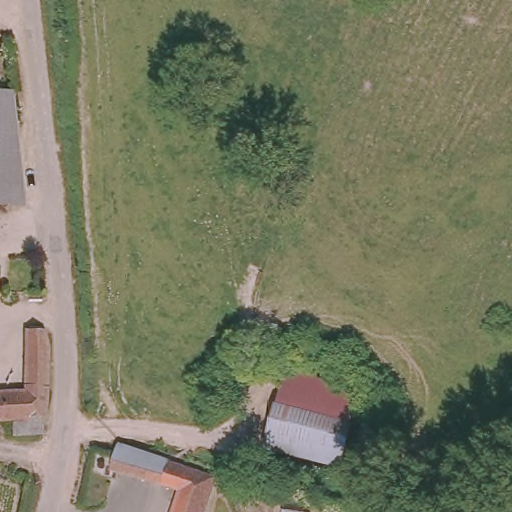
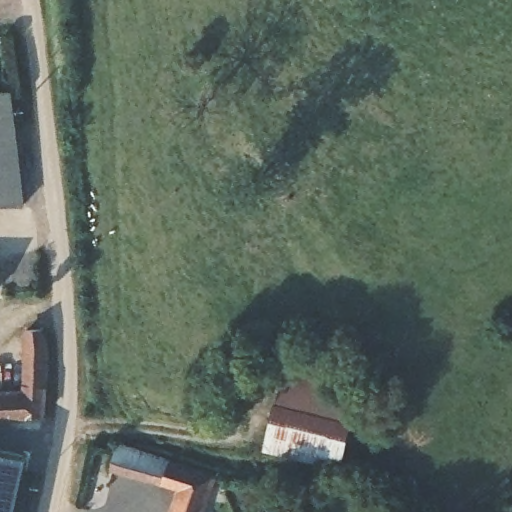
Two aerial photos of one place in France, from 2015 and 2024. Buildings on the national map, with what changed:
unchanged [(28,207),(0,207),(0,87),(17,87),(19,110),(27,187),(28,207)]
unchanged [(23,328),(45,327),(50,359),(40,432),(15,430),(15,413),(0,416),(0,391),(22,387),(23,328)]
unchanged [(243,400),(216,383),(235,354),(261,366),(243,400)]
unchanged [(288,375),(313,382),(313,410),(358,423),(344,469),(268,448),(288,375)]
new [(15,512),(0,512),(0,450),(27,456),(15,512)]
unchanged [(203,489),(198,512),(169,512),(174,491),(110,472),(115,454),(157,465),(186,473),(185,483),(203,489)]
unchanged [(240,512),(240,510),(247,512),(240,512)]

